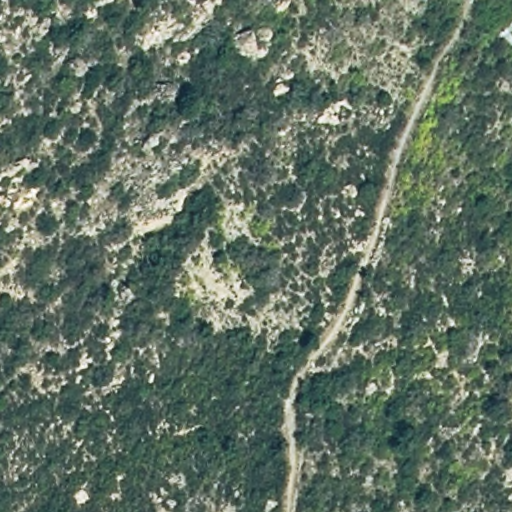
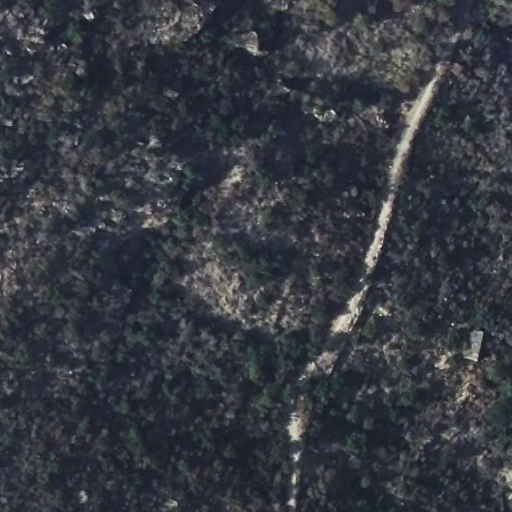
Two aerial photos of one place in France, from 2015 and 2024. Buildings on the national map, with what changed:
[]

